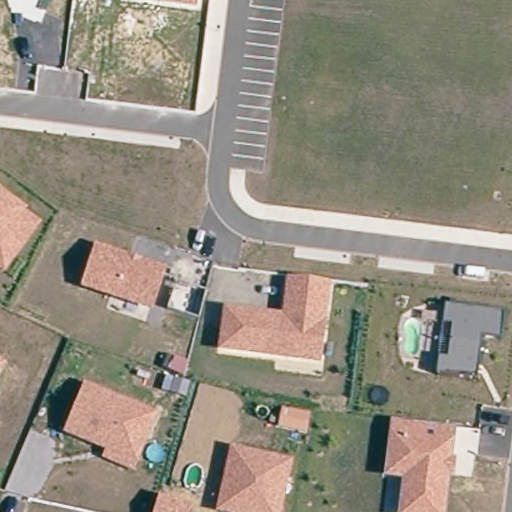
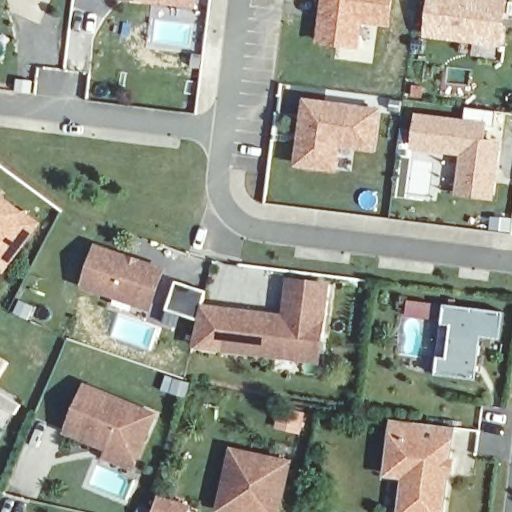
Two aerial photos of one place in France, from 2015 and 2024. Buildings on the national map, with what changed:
unchanged [(195,6),(159,3),(128,0),(196,0),(195,6)]
new [(319,0),(392,0),(388,27),(362,24),(358,50),(312,42),(319,0)]
new [(504,46),(425,37),(429,0),(509,0),(504,46)]
new [(382,108),(377,152),(342,147),(338,174),(294,168),(304,99),(382,108)]
new [(493,193),(462,189),(468,149),(417,142),(421,112),(485,120),(483,138),(500,140),(498,160),(496,172),(493,193)]
unchanged [(26,245),(11,234),(0,249),(0,195),(40,226),(26,245)]
unchanged [(26,245),(5,272),(0,269),(0,249),(11,234),(26,245)]
unchanged [(94,245),(165,266),(151,311),(80,289),(94,245)]
unchanged [(298,360),(220,348),(225,310),(275,318),(275,320),(285,321),(288,307),(286,307),(290,281),(327,287),(320,340),(316,362),(298,360)]
new [(194,346),(199,321),(167,312),(178,283),(209,292),(205,307),(225,310),(220,348),(194,346)]
unchanged [(501,311),(498,340),(481,337),(475,382),(435,377),(443,305),(501,311)]
unchanged [(0,371),(0,362),(5,365),(0,371)]
unchanged [(105,456),(110,447),(69,429),(89,385),(155,415),(145,439),(132,468),(105,456)]
unchanged [(455,427),(451,456),(456,457),(454,480),(448,480),(444,512),(398,512),(401,480),(383,478),(390,420),(455,427)]
unchanged [(292,460),(281,512),(215,512),(229,446),(292,460)]
unchanged [(191,505),(189,512),(152,512),(156,495),(191,505)]

